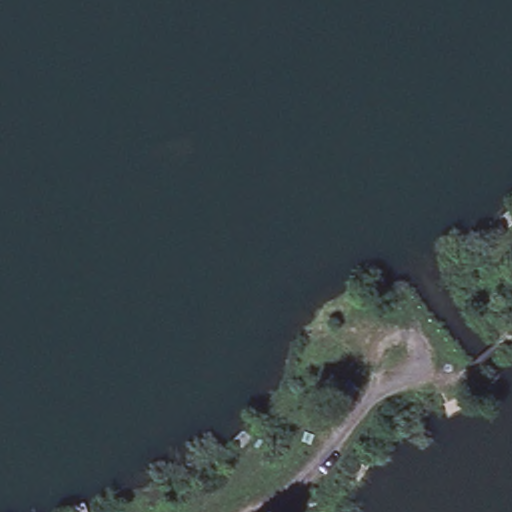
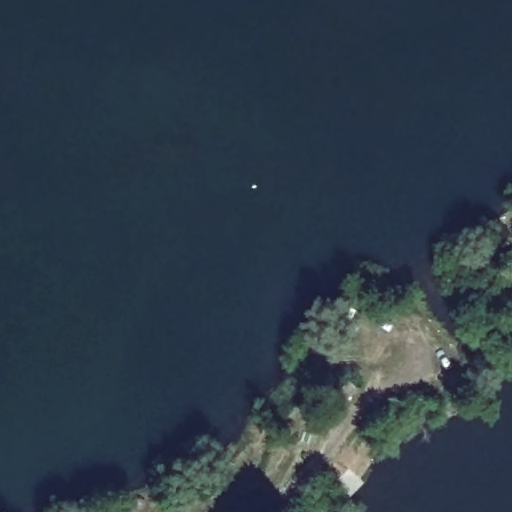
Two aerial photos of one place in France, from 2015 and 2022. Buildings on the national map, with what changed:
unchanged [(356,383),(340,402),(327,394),(345,374),(356,383)]
unchanged [(86,504),(91,512),(73,512),(72,509),(86,504)]

